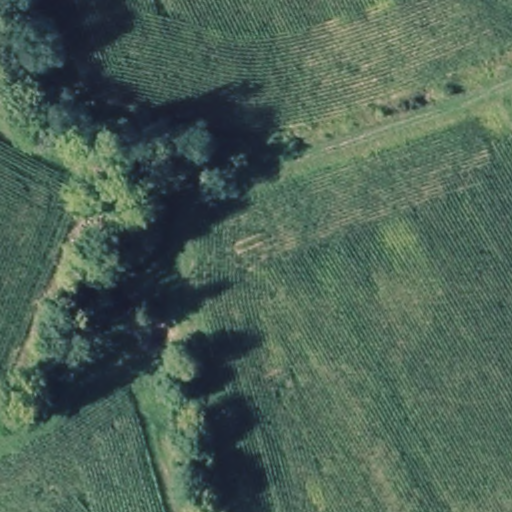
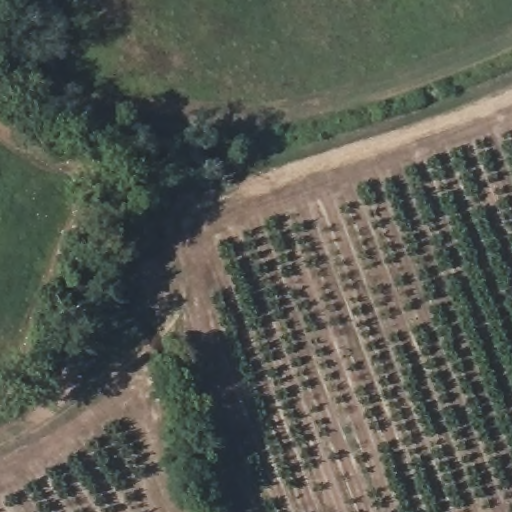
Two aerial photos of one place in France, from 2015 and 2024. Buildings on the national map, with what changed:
[]

